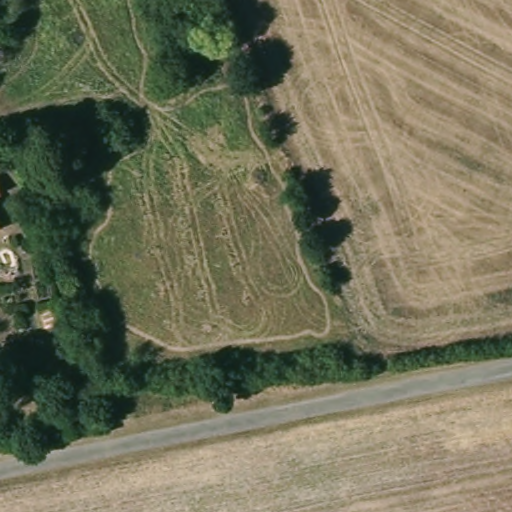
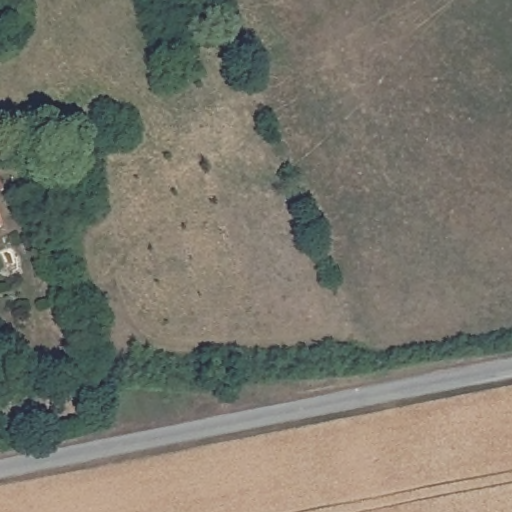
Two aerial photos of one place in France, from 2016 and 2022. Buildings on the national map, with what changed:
unchanged [(4,199),(0,201),(0,187),(4,199)]
unchanged [(3,233),(0,234),(0,225),(3,233)]

